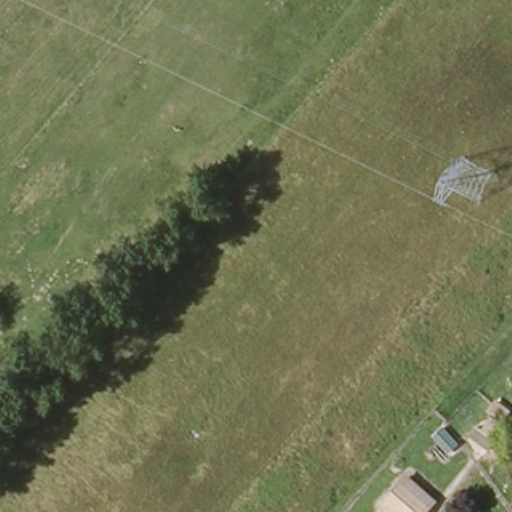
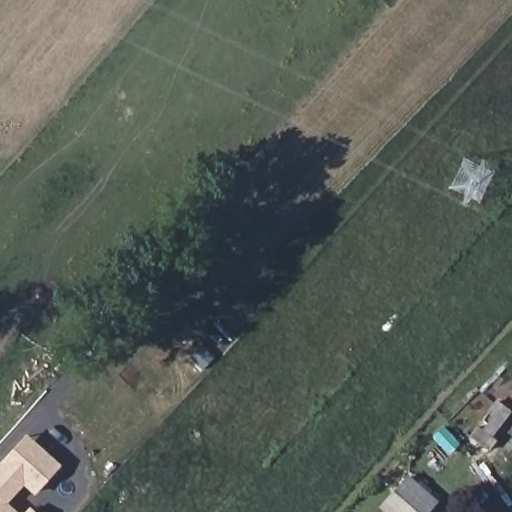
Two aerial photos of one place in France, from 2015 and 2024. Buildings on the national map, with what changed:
unchanged [(477,438),(485,429),(490,433),(505,418),(512,425),(498,440),(502,445),(495,453),(477,438)]
new [(8,502),(18,512),(0,512),(0,462),(26,433),(62,465),(35,495),(24,485),(8,502)]
unchanged [(426,512),(393,512),(383,503),(410,475),(437,500),(426,512)]
new [(36,512),(24,512),(30,506),(36,512)]

